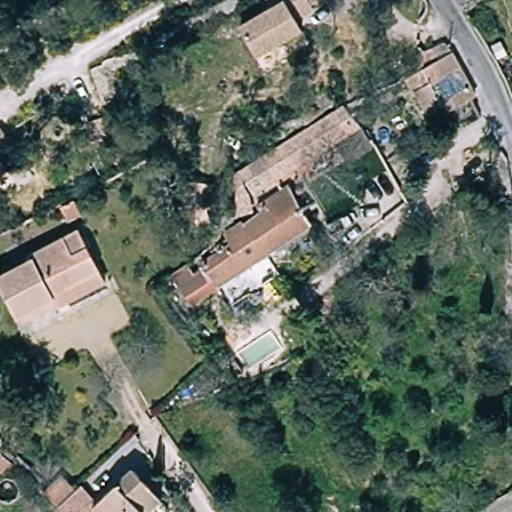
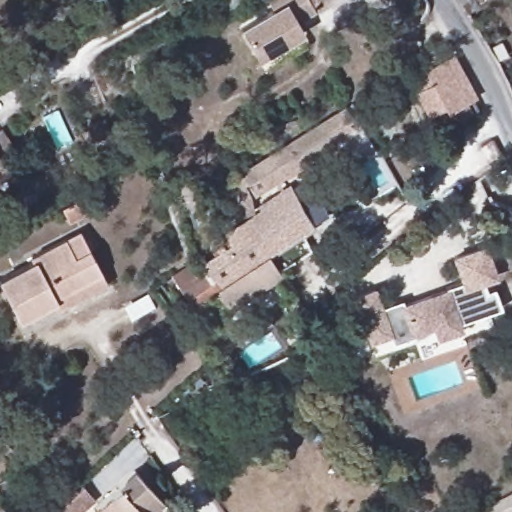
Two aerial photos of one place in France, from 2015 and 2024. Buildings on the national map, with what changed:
unchanged [(269,1),(270,0),(321,0),(319,3),(304,17),(309,26),(259,60),(241,31),(274,11),(269,1)]
unchanged [(483,0),(464,12),(455,0),(483,0)]
unchanged [(441,61),(469,106),(444,120),(441,116),(430,121),(414,98),(423,91),(413,77),(443,60),(441,61)]
unchanged [(359,130),(253,189),(241,168),(346,108),(359,130)]
unchanged [(17,150),(0,162),(0,136),(5,133),(17,150)]
unchanged [(0,184),(0,164),(9,178),(0,184)]
unchanged [(288,192),(312,233),(264,264),(257,255),(241,230),(223,242),(217,234),(288,192)]
unchanged [(223,242),(241,230),(257,255),(264,264),(191,311),(169,281),(186,270),(193,280),(201,275),(188,254),(188,252),(203,243),(217,234),(223,242)]
unchanged [(56,308),(19,328),(0,291),(0,283),(33,266),(30,261),(79,237),(100,278),(107,292),(60,316),(56,308)]
new [(351,296),(375,288),(382,307),(402,300),(403,304),(460,283),(452,256),(486,244),(498,280),(483,285),(486,291),(494,288),(501,308),(460,323),(463,331),(436,341),(432,329),(394,343),(391,337),(369,344),(351,296)]
unchanged [(93,510),(133,475),(159,504),(150,512),(95,512),(93,510)]

